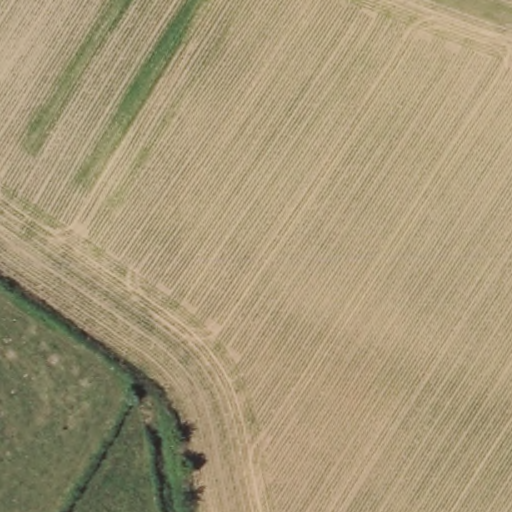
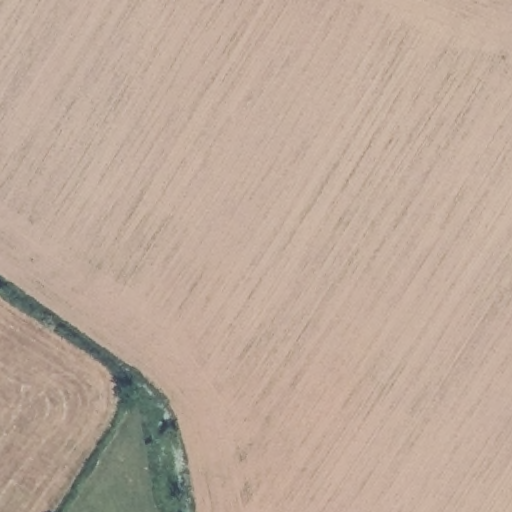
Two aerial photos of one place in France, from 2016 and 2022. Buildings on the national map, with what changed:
[]

